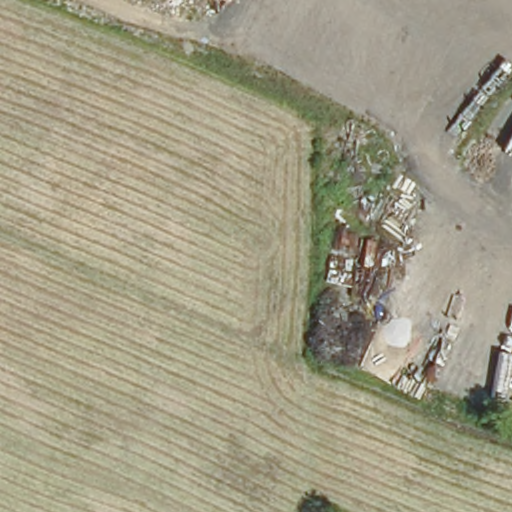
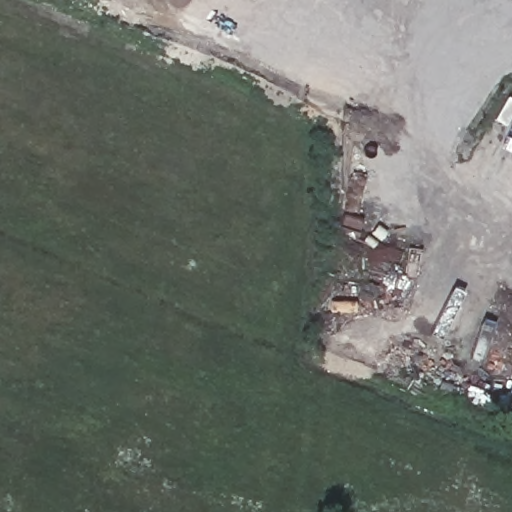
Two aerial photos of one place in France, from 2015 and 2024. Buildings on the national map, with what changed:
[]

